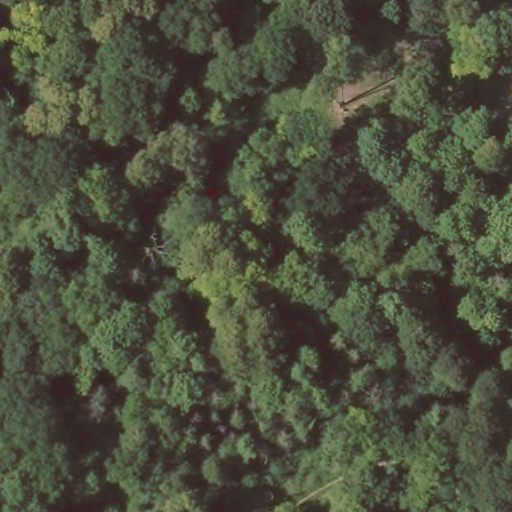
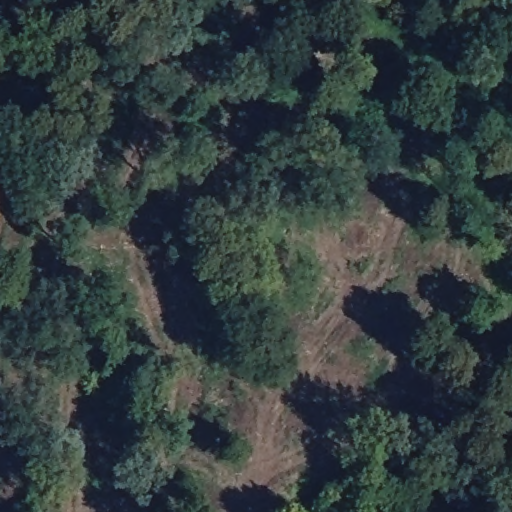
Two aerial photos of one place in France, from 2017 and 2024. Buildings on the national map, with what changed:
unchanged [(481,0),(494,0),(511,12),(489,62),(460,47),(481,0)]

